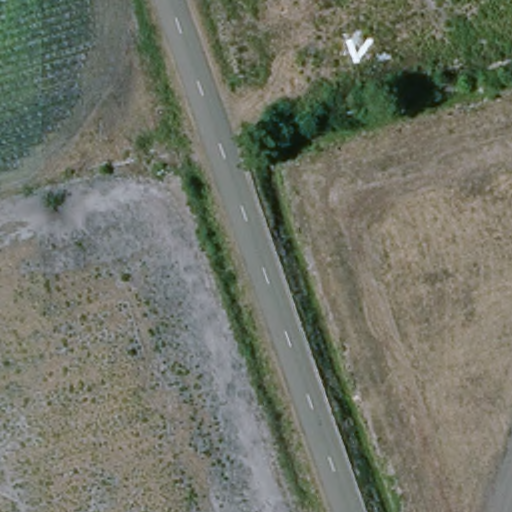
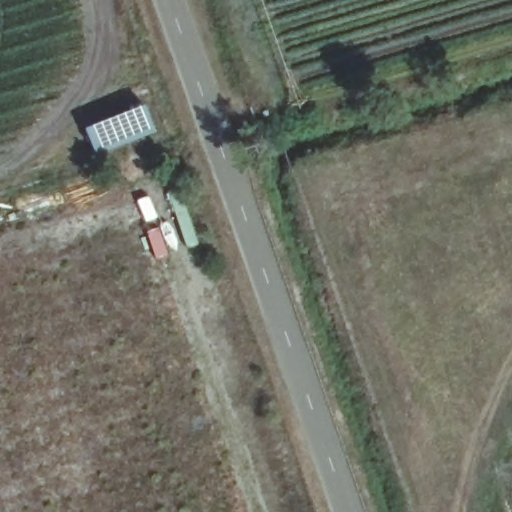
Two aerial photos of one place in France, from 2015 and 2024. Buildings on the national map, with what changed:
new [(98,152),(88,128),(145,105),(155,130),(98,152)]

